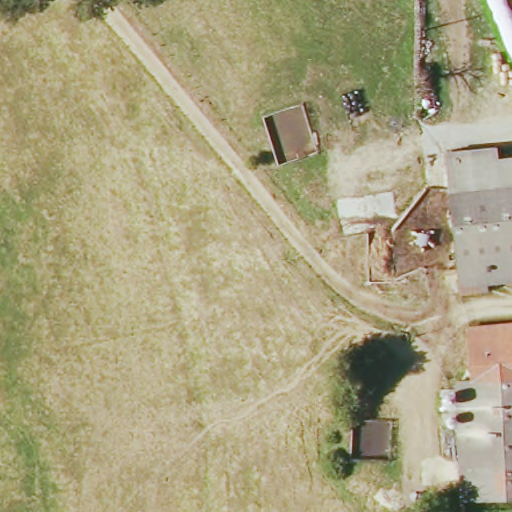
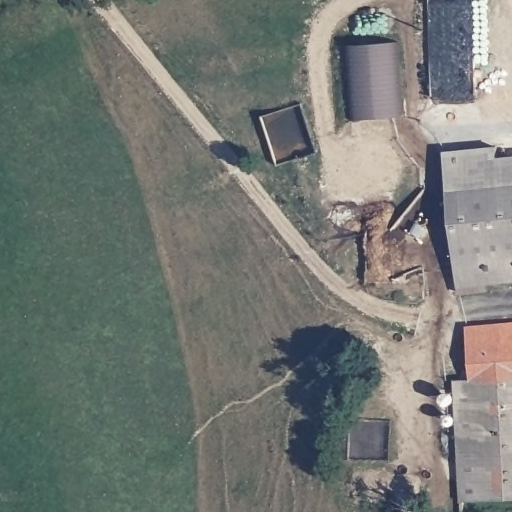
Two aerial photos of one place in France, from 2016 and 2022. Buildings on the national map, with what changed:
new [(360,119),(355,46),(397,42),(403,116),(360,119)]
unchanged [(447,190),(443,154),(497,148),(498,161),(512,160),(512,183),(457,188),(447,190)]
unchanged [(512,183),(512,282),(490,285),(491,291),(457,297),(455,285),(460,284),(457,188),(512,183)]
unchanged [(512,329),(512,500),(462,503),(455,386),(478,383),(475,333),(512,329)]

